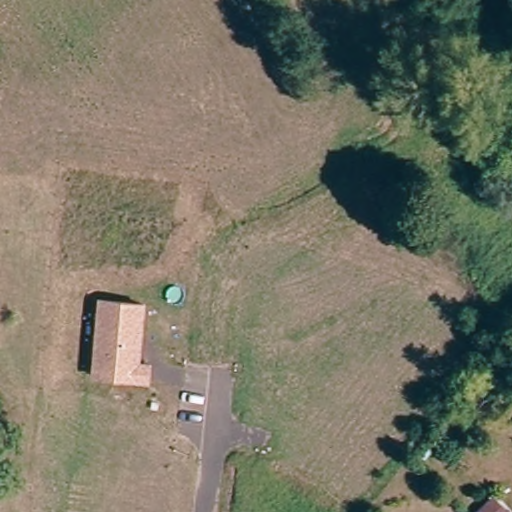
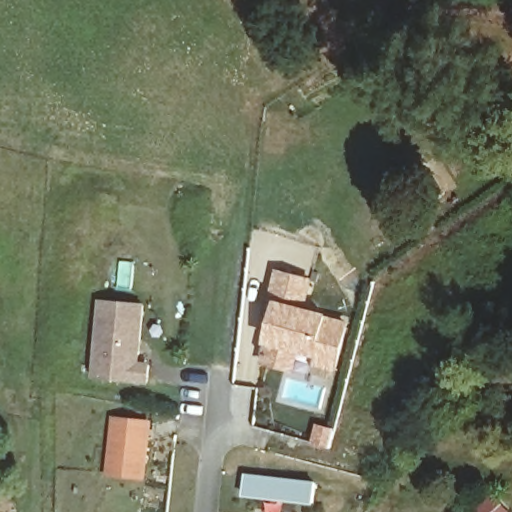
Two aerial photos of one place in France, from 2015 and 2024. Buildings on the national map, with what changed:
new [(316,280),(309,309),(331,315),(353,322),(341,373),(315,367),(319,357),(301,354),(296,374),(260,363),(265,344),(270,327),(262,325),(278,269),(316,280)]
unchanged [(98,299),(146,303),(143,361),(154,362),(153,384),(92,380),(98,299)]
unchanged [(3,381),(0,394),(0,381),(3,381)]
new [(153,421),(147,480),(107,477),(112,417),(153,421)]
new [(318,482),(317,505),(244,498),(246,475),(318,482)]
unchanged [(479,512),(476,512),(478,511),(479,512)]

